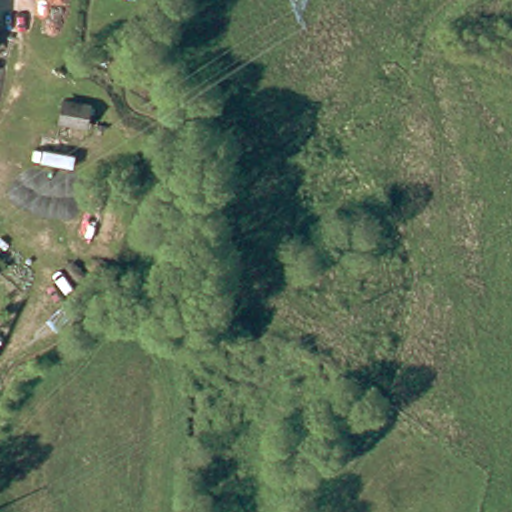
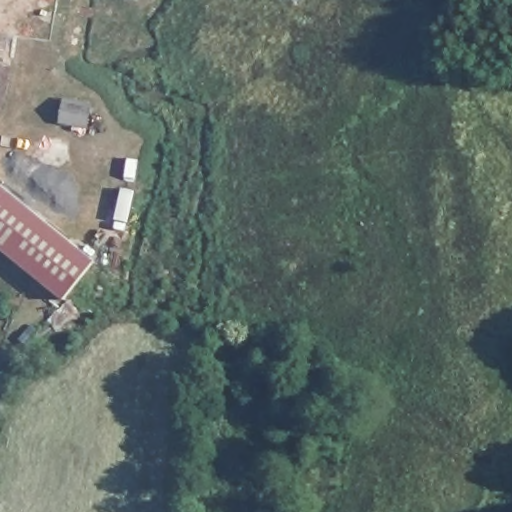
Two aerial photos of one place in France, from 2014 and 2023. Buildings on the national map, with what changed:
new [(67,101),(92,105),(89,126),(64,121),(67,101)]
new [(63,300),(0,249),(0,184),(95,260),(63,300)]

